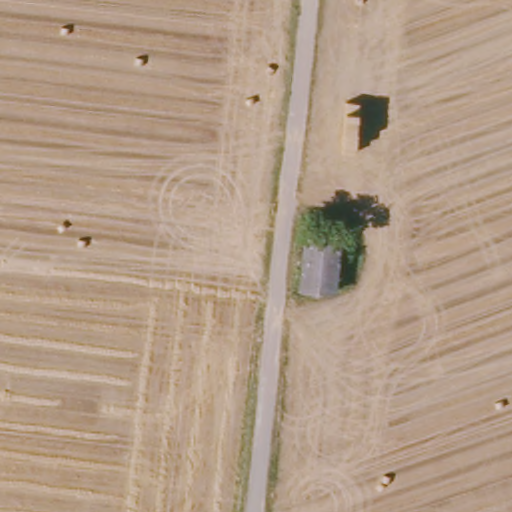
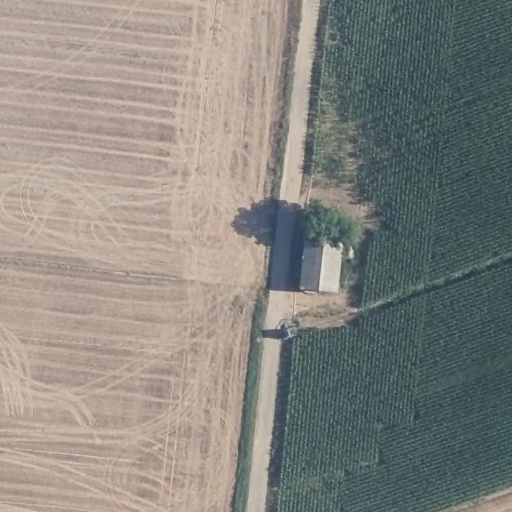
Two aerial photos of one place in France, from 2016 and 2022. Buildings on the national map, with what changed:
unchanged [(347,237),(341,297),(304,294),(310,234),(347,237)]

